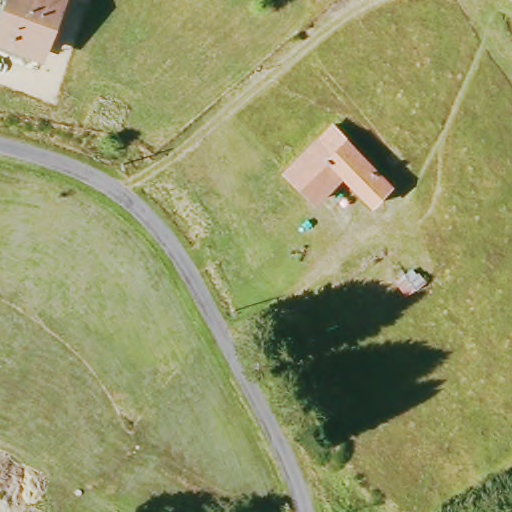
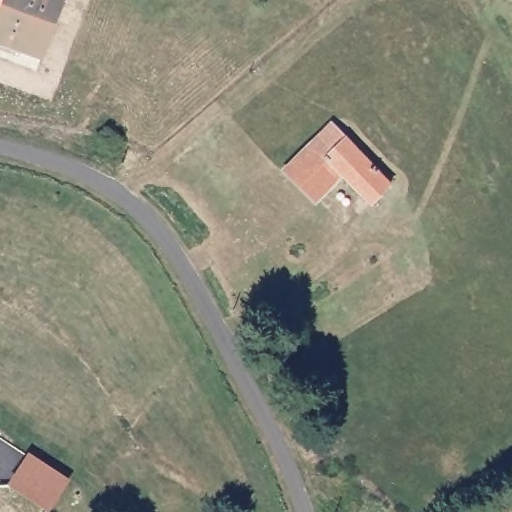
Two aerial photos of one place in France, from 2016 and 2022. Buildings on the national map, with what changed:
unchanged [(0,47),(0,17),(6,0),(68,0),(45,64),(0,47)]
unchanged [(285,176),(290,172),(337,126),(396,194),(372,213),(343,179),(318,205),(315,210),(285,176)]
new [(70,480),(48,512),(7,485),(29,453),(70,480)]

